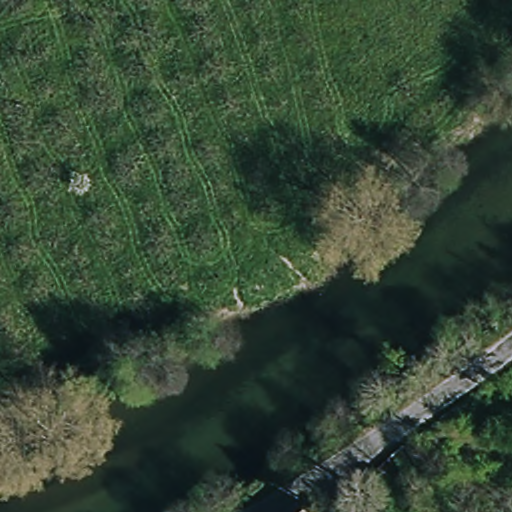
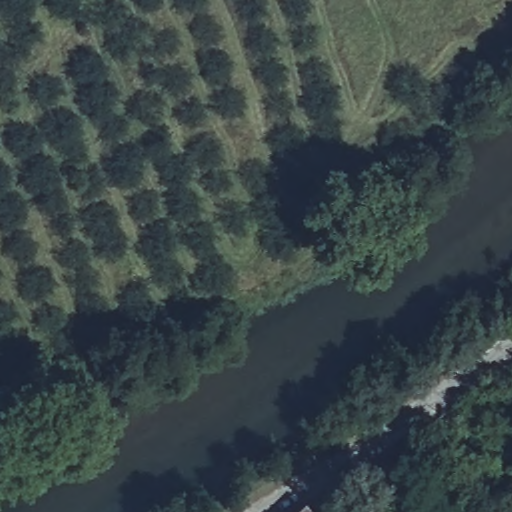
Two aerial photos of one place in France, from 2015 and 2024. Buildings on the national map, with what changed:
unchanged [(310,502),(319,512),(299,512),(310,502)]

